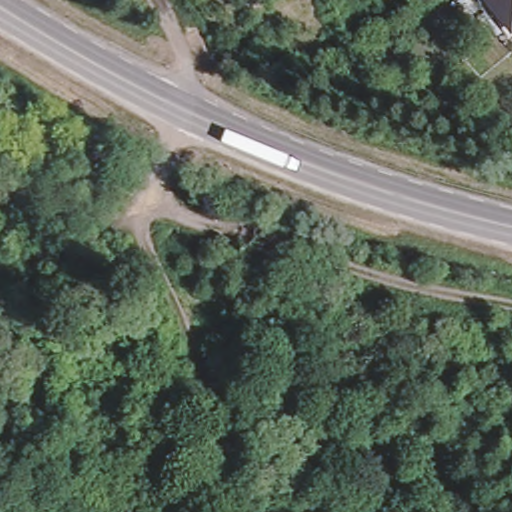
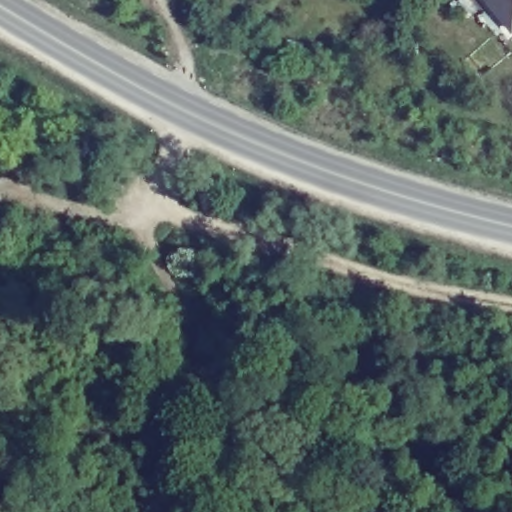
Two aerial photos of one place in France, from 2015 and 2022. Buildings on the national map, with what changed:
unchanged [(490,0),(512,0),(512,26),(490,0)]

